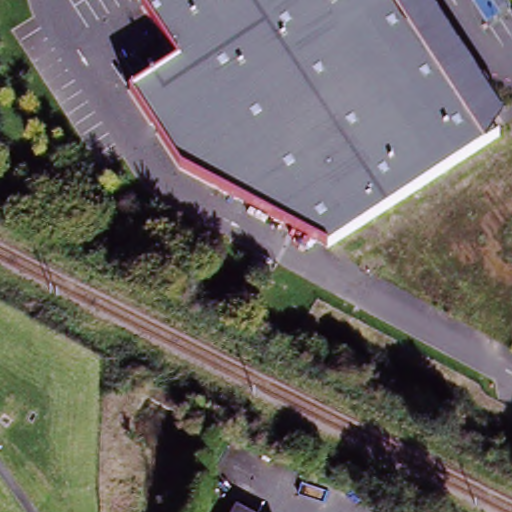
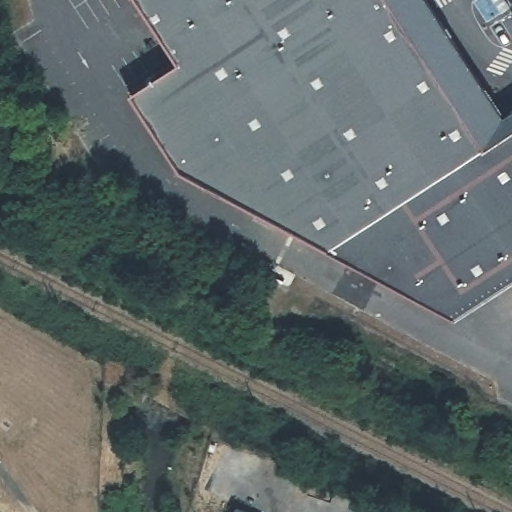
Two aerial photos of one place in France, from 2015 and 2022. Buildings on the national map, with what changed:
unchanged [(180,171),(133,97),(179,64),(137,0),(428,0),(505,114),(485,147),(328,250),(180,171)]
new [(457,318),(328,250),(485,147),(505,114),(512,109),(512,282),(457,318)]
unchanged [(234,510),(238,512),(233,512),(234,510)]

